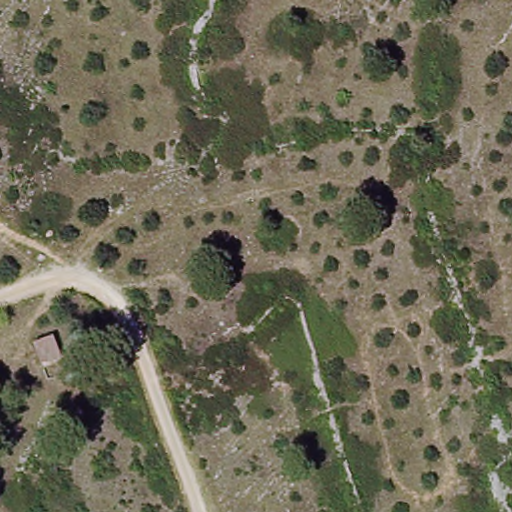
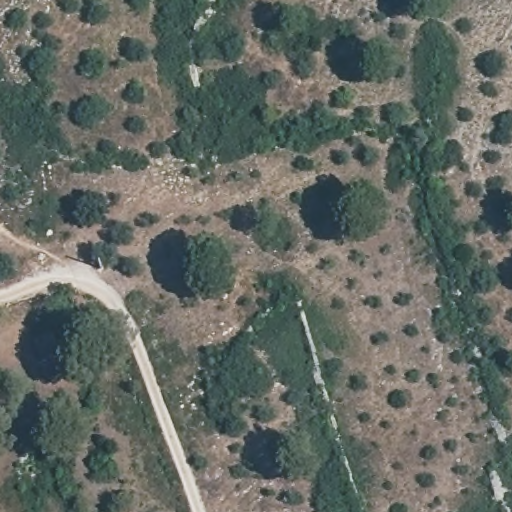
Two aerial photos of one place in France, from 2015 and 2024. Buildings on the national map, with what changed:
unchanged [(70,358),(49,366),(40,346),(61,337),(70,358)]

